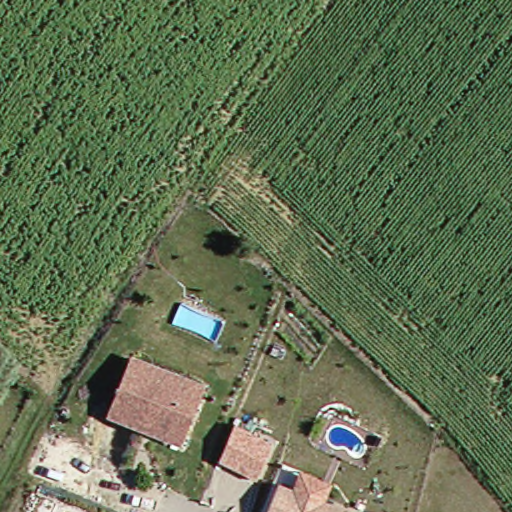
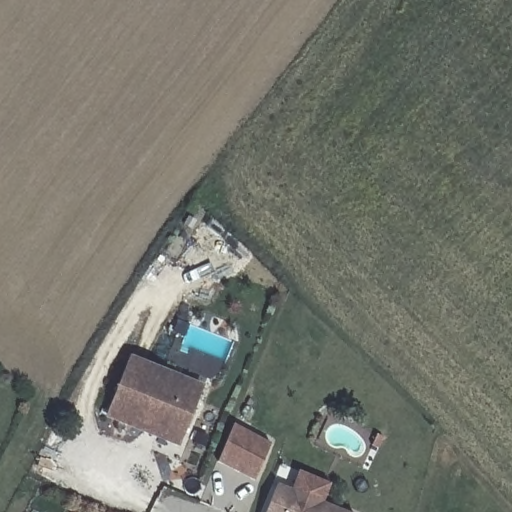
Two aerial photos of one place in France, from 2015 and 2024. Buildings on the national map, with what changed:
unchanged [(180,449),(106,418),(130,362),(150,370),(141,388),(196,411),(180,449)]
unchanged [(204,392),(196,411),(141,388),(150,370),(204,392)]
unchanged [(218,460),(234,425),(272,444),(257,479),(218,460)]
unchanged [(291,492),(298,474),(329,486),(321,504),(340,512),(266,512),(276,486),(291,492)]

